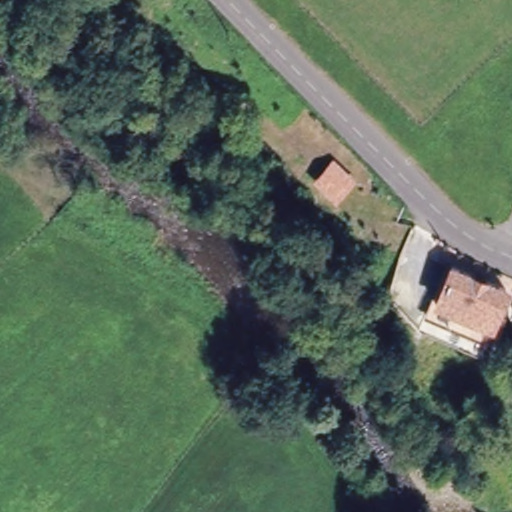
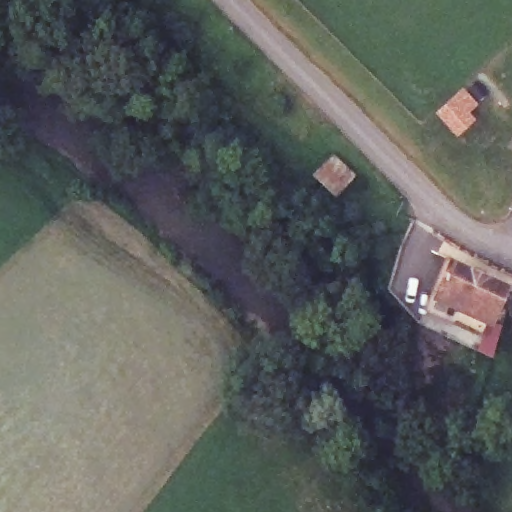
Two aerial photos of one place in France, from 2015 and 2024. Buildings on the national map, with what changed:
new [(435,112),(463,86),(478,104),(469,112),(476,120),(457,136),(435,112)]
unchanged [(353,175),(333,197),(310,174),(331,153),(353,175)]
unchanged [(427,295),(420,292),(428,274),(437,279),(453,247),(512,276),(512,294),(500,333),(427,295)]

